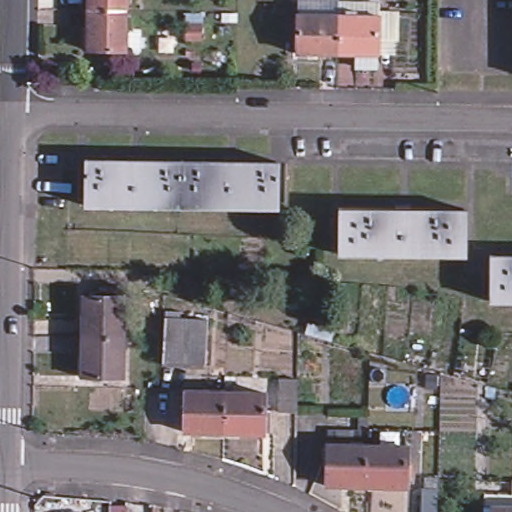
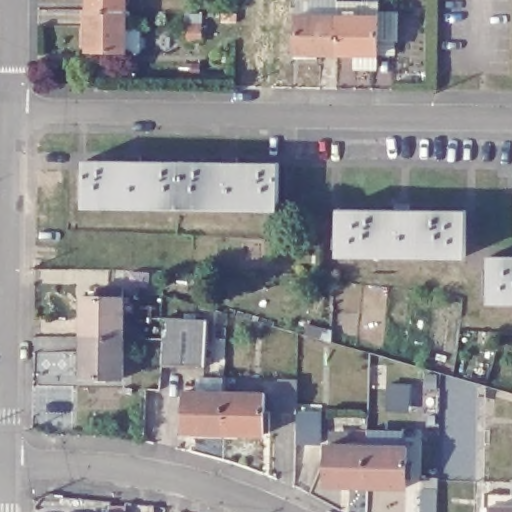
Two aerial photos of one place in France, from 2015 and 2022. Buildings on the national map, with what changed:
unchanged [(90,12),(90,0),(129,0),(129,13),(90,12)]
unchanged [(295,56),(295,16),(295,1),(336,1),(336,16),(376,17),(376,11),(399,12),(399,43),(376,43),(376,58),(334,57),(295,56)]
unchanged [(128,53),(89,52),(90,12),(129,13),(128,53)]
unchanged [(187,30),(203,30),(202,42),(186,42),(187,30)]
unchanged [(278,166),(276,213),(84,208),(84,164),(278,166)]
unchanged [(339,258),(339,213),(419,215),(419,259),(339,258)]
unchanged [(466,216),(467,260),(419,259),(419,215),(466,216)]
unchanged [(496,300),(497,256),(508,257),(512,257),(512,300),(508,300),(496,300)]
unchanged [(126,302),(127,341),(86,341),(86,302),(126,302)]
unchanged [(174,318),(211,317),(212,365),(173,362),(174,318)]
unchanged [(127,382),(86,382),(86,341),(127,341),(127,382)]
unchanged [(299,382),(298,417),(281,416),(281,381),(299,382)]
unchanged [(186,436),(186,395),(226,396),(226,437),(186,436)]
unchanged [(266,398),(265,438),(226,437),(226,396),(266,398)]
unchanged [(328,484),(329,444),(370,446),(369,486),(328,484)]
unchanged [(409,447),(409,487),(369,486),(370,446),(409,447)]
unchanged [(488,499),(512,500),(512,512),(487,512),(488,499)]

